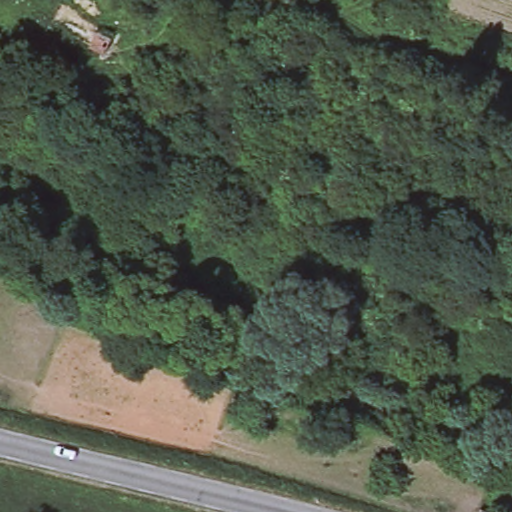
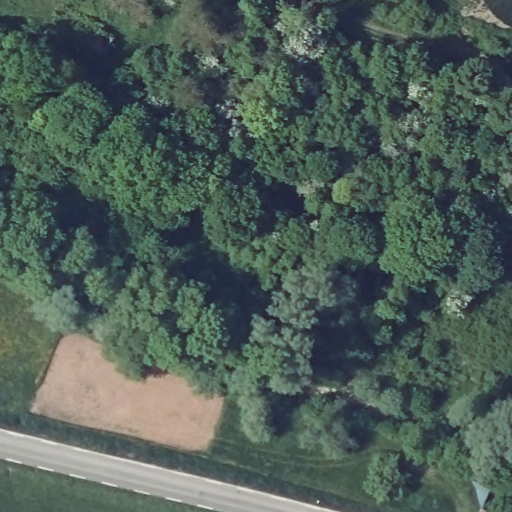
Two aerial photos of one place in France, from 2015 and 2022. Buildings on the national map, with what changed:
unchanged [(62,17),(110,36),(105,51),(57,31),(62,17)]
unchanged [(490,512),(475,512),(477,506),(490,512)]

